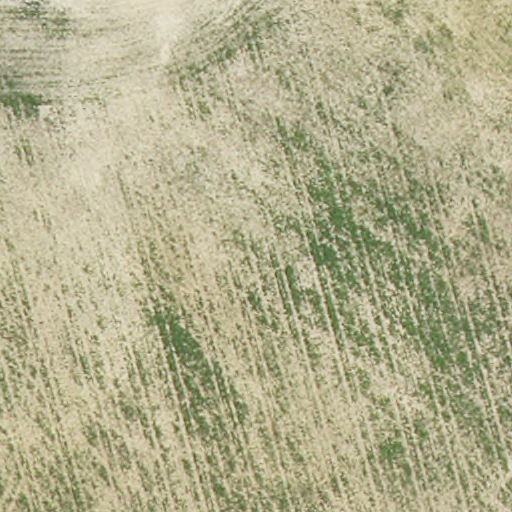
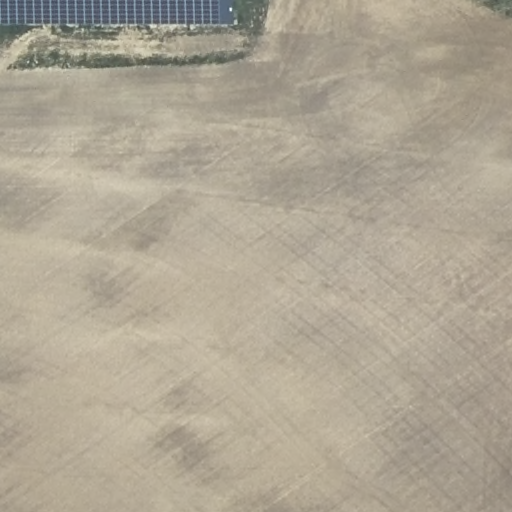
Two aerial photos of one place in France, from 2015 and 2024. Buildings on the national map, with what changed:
new [(0,0),(235,0),(236,27),(0,27),(0,0)]

